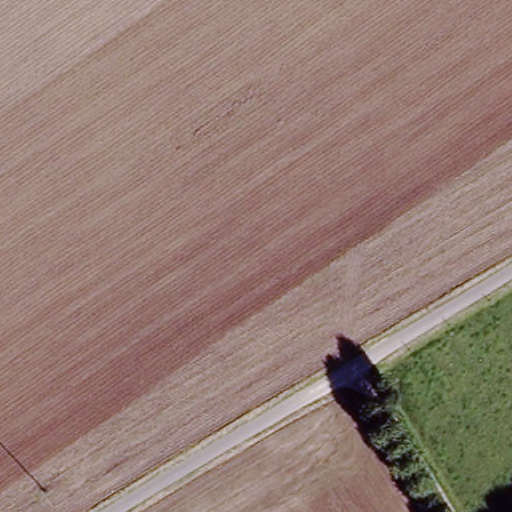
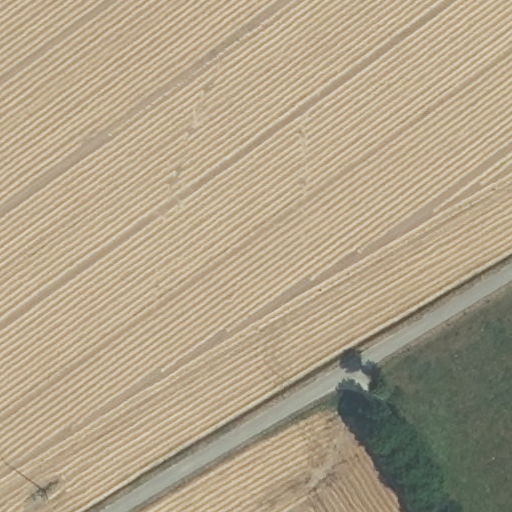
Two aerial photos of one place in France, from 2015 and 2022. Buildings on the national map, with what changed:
[]

